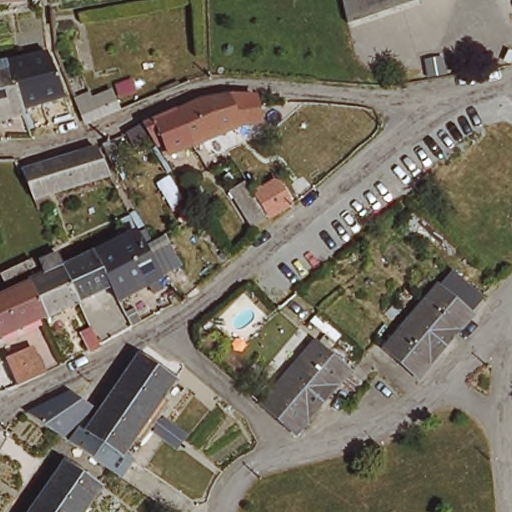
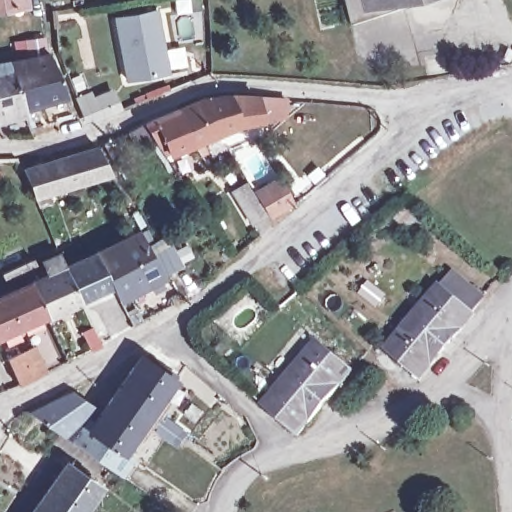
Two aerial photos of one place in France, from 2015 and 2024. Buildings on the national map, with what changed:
unchanged [(23,8),(0,11),(0,0),(22,0),(23,8)]
unchanged [(344,27),(342,15),(339,0),(422,0),(344,27)]
new [(168,74),(128,84),(114,17),(158,10),(168,74)]
unchanged [(4,57),(17,54),(43,47),(61,92),(22,104),(4,57)]
unchanged [(22,104),(24,109),(0,115),(0,58),(4,57),(22,104)]
unchanged [(190,101),(240,88),(272,89),(276,113),(256,116),(206,134),(203,129),(190,101)]
unchanged [(112,107),(90,117),(87,109),(84,104),(106,95),(109,101),(112,107)]
unchanged [(141,124),(140,120),(156,113),(158,116),(190,101),(203,129),(206,134),(183,144),(174,132),(170,134),(168,131),(151,140),(141,124)]
unchanged [(25,170),(100,149),(113,175),(80,186),(37,198),(25,170)]
unchanged [(270,215),(256,225),(235,193),(250,184),(270,215)]
unchanged [(97,256),(146,233),(154,250),(156,249),(169,241),(183,270),(169,276),(163,280),(164,282),(120,302),(114,290),(97,256)]
unchanged [(97,256),(114,290),(83,304),(78,296),(65,271),(97,256)]
unchanged [(78,296),(83,304),(49,320),(32,287),(49,278),(43,266),(59,258),(65,271),(78,296)]
unchanged [(10,291),(4,278),(25,266),(33,261),(40,278),(30,283),(10,291)]
unchanged [(447,277),(450,274),(479,299),(477,302),(467,314),(470,317),(414,381),(378,350),(434,286),(437,288),(447,277)]
unchanged [(49,320),(0,341),(0,301),(32,287),(49,320)]
unchanged [(144,322),(136,327),(129,316),(139,311),(144,322)]
unchanged [(95,351),(87,332),(95,327),(96,329),(104,346),(95,351)]
unchanged [(302,436),(266,406),(267,403),(309,355),(319,342),(355,372),(302,436)]
unchanged [(0,362),(4,360),(10,357),(37,346),(50,372),(22,384),(9,390),(0,370),(0,362)]
unchanged [(158,397),(165,403),(150,424),(109,395),(136,356),(171,380),(158,397)]
unchanged [(88,410),(58,436),(29,415),(67,390),(88,410)]
unchanged [(114,475),(106,469),(66,441),(83,417),(89,422),(109,395),(150,424),(136,443),(129,438),(117,455),(124,460),(114,475)]
unchanged [(90,512),(50,512),(39,504),(64,468),(98,493),(86,509),(90,512)]
unchanged [(50,512),(33,512),(39,504),(50,512)]

